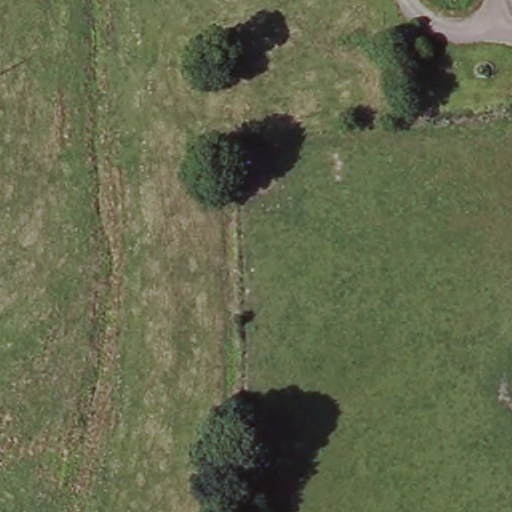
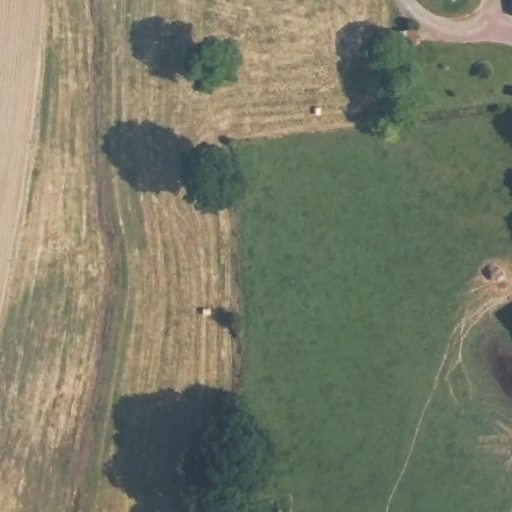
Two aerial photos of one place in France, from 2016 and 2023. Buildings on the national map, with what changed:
unchanged [(415,28),(418,39),(394,42),(393,31),(415,28)]

